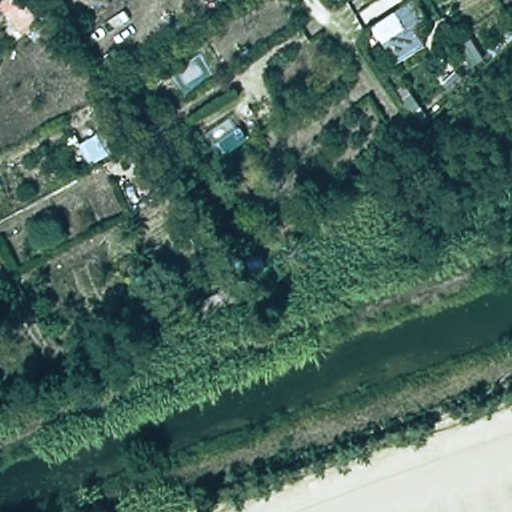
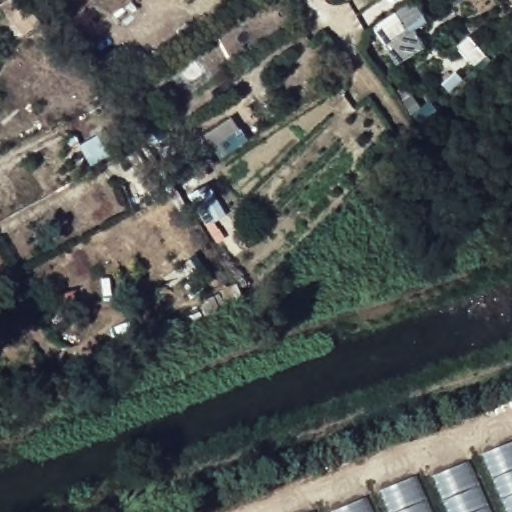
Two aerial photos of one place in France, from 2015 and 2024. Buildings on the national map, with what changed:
new [(417,17),(422,14),(426,22),(414,29),(424,47),(394,65),(371,25),(409,3),(417,17)]
unchanged [(241,236),(226,243),(199,201),(212,192),(241,236)]
unchanged [(234,285),(243,301),(201,319),(195,302),(234,285)]
new [(330,512),(416,475),(419,484),(512,443),(512,512),(330,512)]
new [(314,512),(310,512),(314,511),(314,512)]

